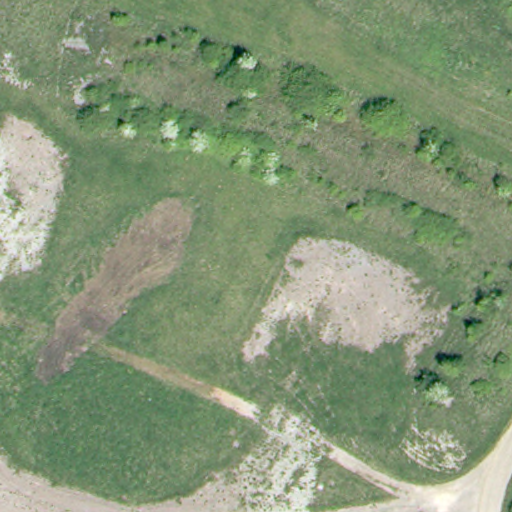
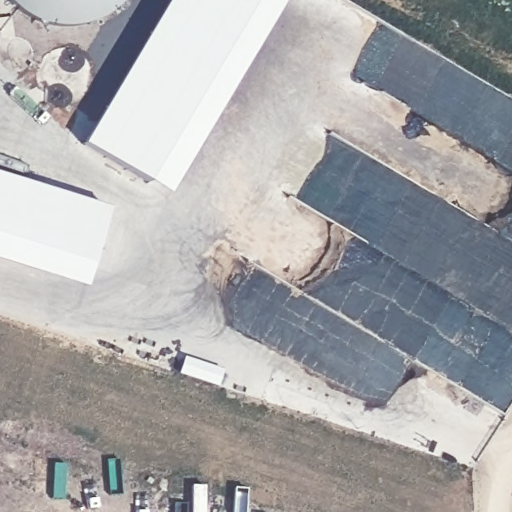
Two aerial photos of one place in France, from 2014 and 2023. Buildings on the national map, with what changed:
new [(186,0),(274,0),(155,198),(90,159),(186,0)]
new [(274,0),(299,0),(173,209),(155,198),(274,0)]
new [(115,224),(97,281),(0,251),(0,188),(115,224)]

